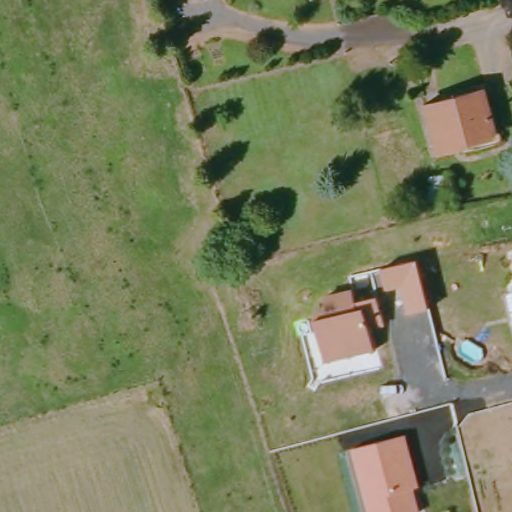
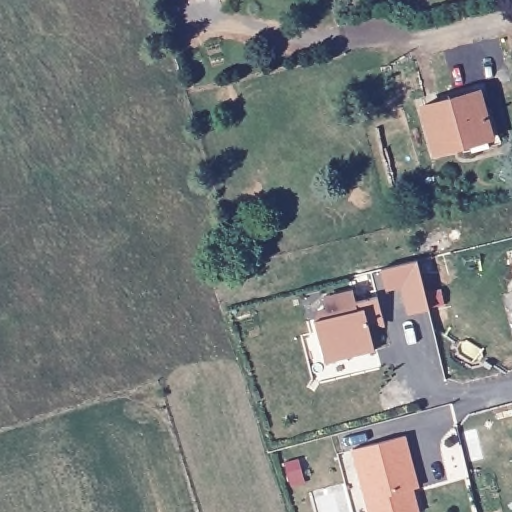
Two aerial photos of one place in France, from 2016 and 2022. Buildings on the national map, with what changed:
unchanged [(469,90),(483,137),(427,151),(414,103),(469,90)]
unchanged [(386,264),(423,255),(434,303),(415,308),(407,279),(390,283),(386,264)]
unchanged [(330,357),(320,315),(323,308),(332,305),(329,294),(358,287),(361,297),(382,292),(385,301),(378,312),(372,313),(380,345),(330,357)]
unchanged [(351,449),(406,435),(419,488),(413,490),(418,512),(367,512),(351,449)]

